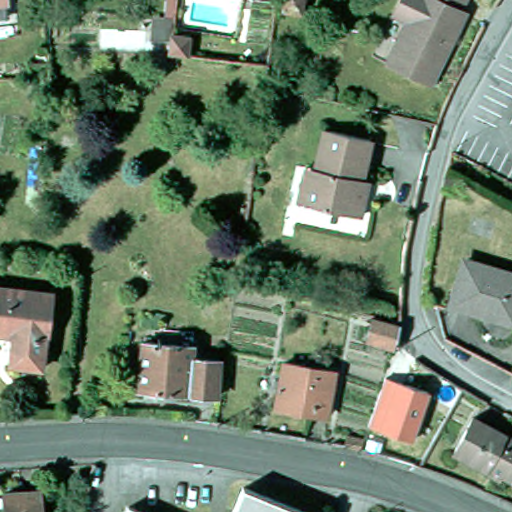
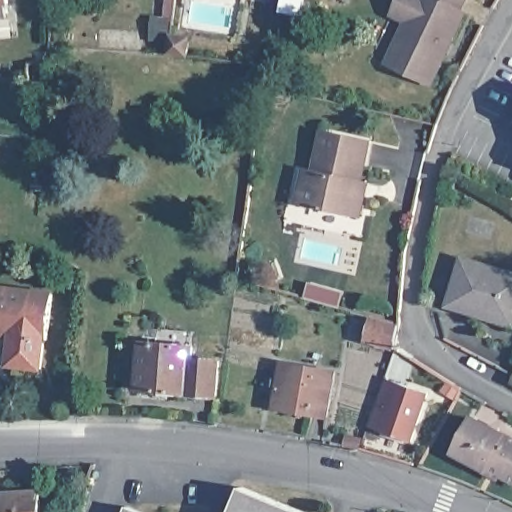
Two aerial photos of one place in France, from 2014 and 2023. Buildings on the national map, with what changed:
unchanged [(6,0),(8,10),(0,11),(0,0),(6,0)]
unchanged [(286,18),(290,0),(310,0),(305,22),(286,18)]
unchanged [(378,58),(392,28),(398,16),(383,8),(387,0),(452,0),(450,4),(456,7),(443,36),(438,46),(423,79),(378,58)]
unchanged [(191,63),(172,60),(175,36),(195,39),(191,63)]
unchanged [(27,88),(28,67),(52,68),(52,89),(27,88)]
unchanged [(360,188),(355,211),(296,199),(301,174),(304,163),(313,165),(322,124),(366,134),(358,176),(362,177),(360,188)]
unchanged [(448,196),(452,182),(463,188),(457,200),(448,196)]
unchanged [(512,272),(512,297),(506,314),(486,308),(485,310),(445,298),(458,254),(512,272)]
unchanged [(9,328),(0,326),(0,280),(50,287),(39,362),(5,356),(9,328)]
unchanged [(405,336),(403,351),(378,344),(381,330),(405,336)]
unchanged [(213,357),(211,391),(134,385),(137,339),(186,343),(185,354),(213,357)]
unchanged [(275,356),(330,368),(321,412),(266,399),(275,356)]
unchanged [(430,393),(414,441),(369,426),(385,377),(430,393)]
unchanged [(469,416),(512,438),(512,483),(483,467),(482,470),(450,452),(469,416)]
unchanged [(6,512),(0,512),(0,501),(5,501),(5,498),(42,495),(43,512),(6,512)]
unchanged [(240,495),(285,512),(233,512),(240,495)]

